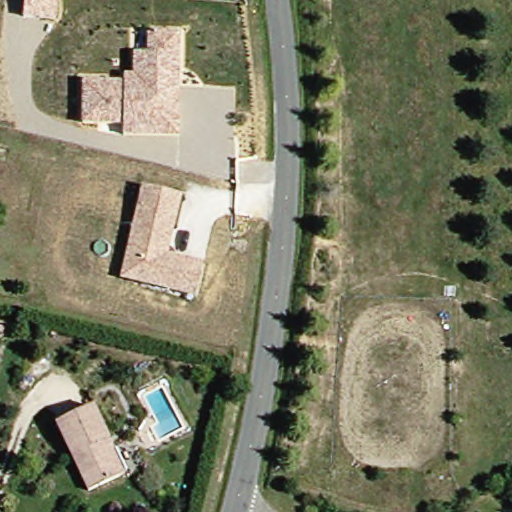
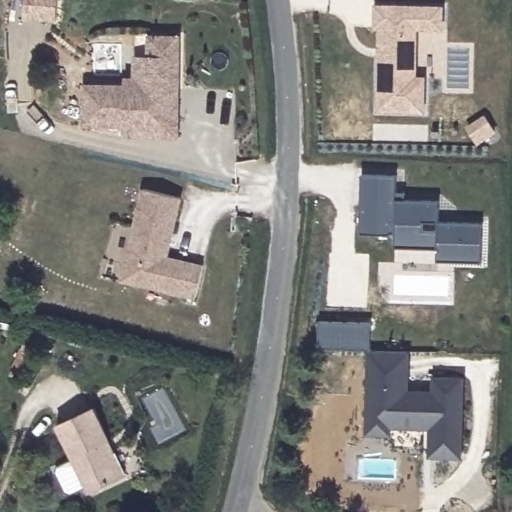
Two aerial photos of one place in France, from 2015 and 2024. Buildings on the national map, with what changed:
new [(58,0),(56,22),(25,20),(26,0),(58,0)]
new [(380,32),(374,32),(375,6),(446,8),(445,33),(419,32),(417,79),(427,79),(426,116),(377,115),(380,32)]
unchanged [(121,140),(121,130),(81,129),(82,86),(122,87),(122,80),(132,80),(132,57),(146,57),(147,36),(152,36),(178,37),(177,90),(177,102),(176,141),(121,140)]
new [(398,177),(398,202),(441,203),(440,222),(485,224),(483,266),(438,263),(439,252),(397,250),(397,237),(362,236),(364,175),(398,177)]
unchanged [(128,261),(144,185),(182,193),(174,229),(171,242),(169,255),(206,262),(199,295),(142,283),(124,280),(128,261)]
new [(320,322),(372,322),(372,351),(320,350),(320,322)]
new [(411,355),(410,391),(432,391),(432,377),(466,377),(465,461),(431,460),(430,432),(394,431),(393,438),(366,437),(368,352),(411,355)]
unchanged [(119,479),(100,489),(66,427),(94,412),(112,447),(126,475),(119,479)]

